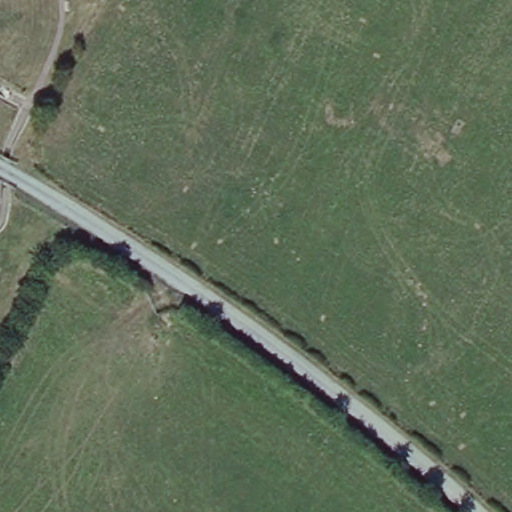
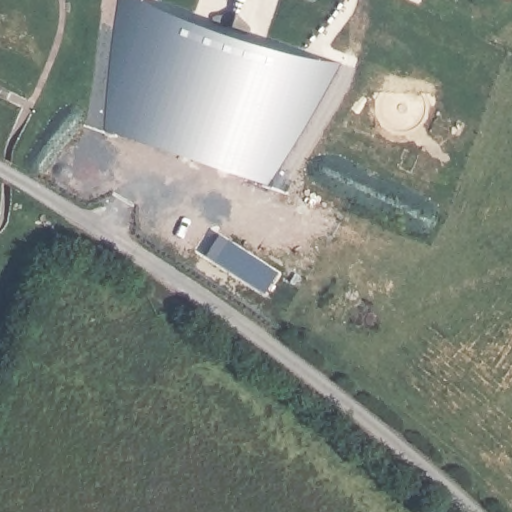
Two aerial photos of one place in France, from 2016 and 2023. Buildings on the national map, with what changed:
new [(230,2),(240,15),(239,20),(228,16),(221,10),(212,10),(200,5),(202,0),(230,0),(230,2)]
new [(118,2),(336,76),(292,146),(271,180),(104,125),(118,2)]

